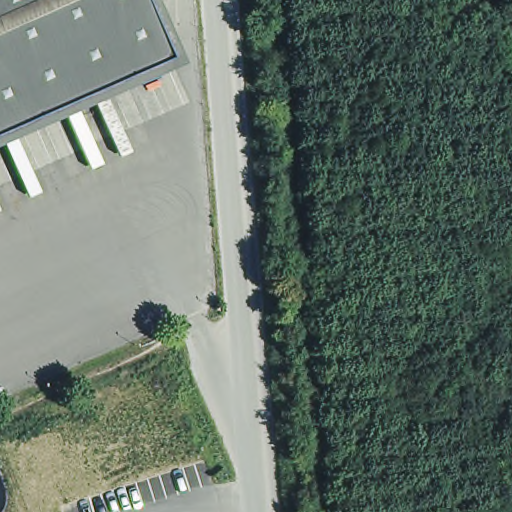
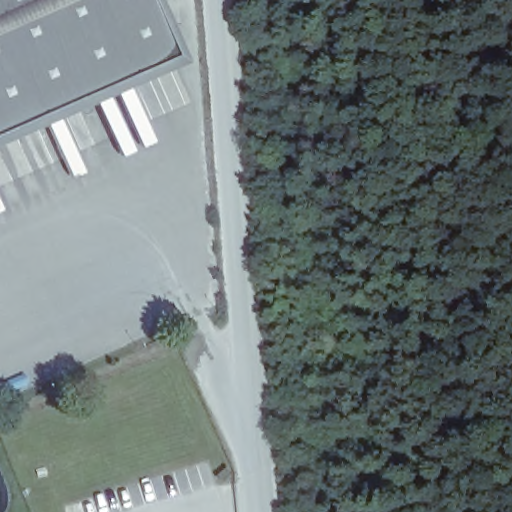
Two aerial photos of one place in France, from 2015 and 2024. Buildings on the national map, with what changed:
unchanged [(0,142),(0,0),(156,0),(180,61),(0,142)]

